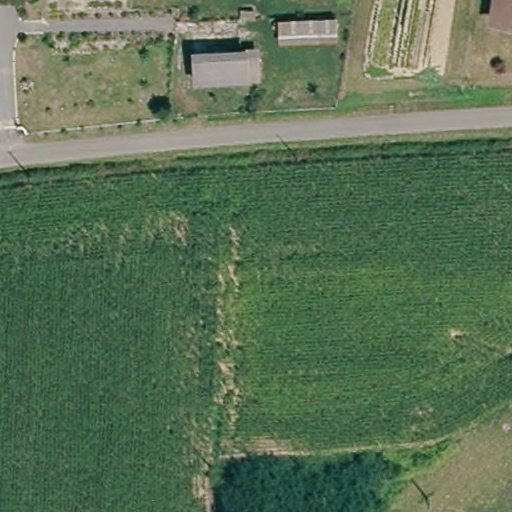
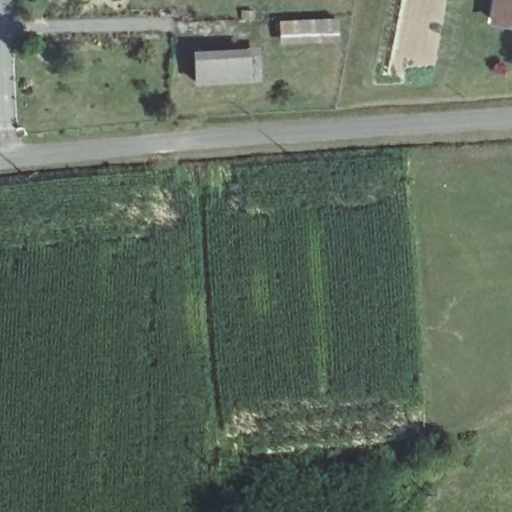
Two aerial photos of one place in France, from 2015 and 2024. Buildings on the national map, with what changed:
unchanged [(512,24),(493,22),(496,0),(512,0),(512,24)]
unchanged [(277,19),(335,17),(337,45),(278,46),(277,19)]
unchanged [(215,50),(215,56),(244,56),(245,62),(272,63),(271,74),(183,69),(185,50),(215,50)]

